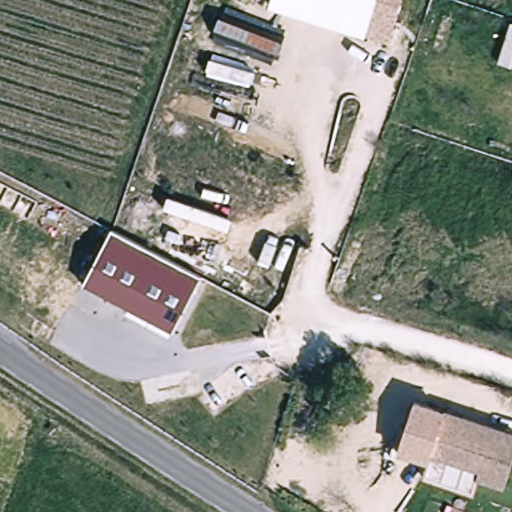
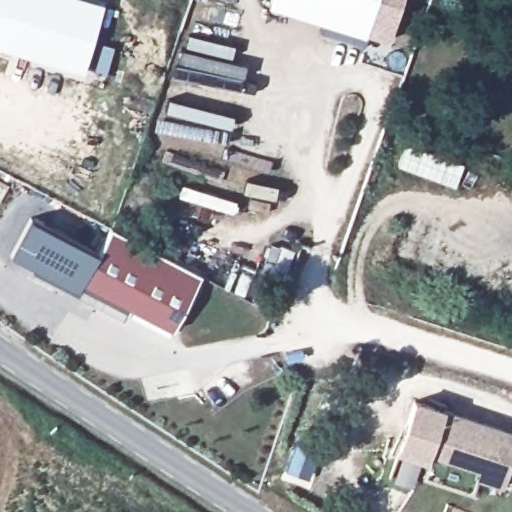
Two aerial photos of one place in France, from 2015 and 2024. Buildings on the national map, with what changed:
new [(85,74),(0,49),(0,0),(92,0),(105,4),(85,74)]
unchanged [(257,0),(388,0),(377,37),(257,1),(257,0)]
new [(399,167),(407,145),(464,165),(456,187),(399,167)]
new [(96,253),(81,282),(75,293),(11,259),(32,220),(96,253)]
unchanged [(200,273),(183,306),(171,329),(81,282),(109,227),(200,273)]
unchanged [(445,412),(430,460),(397,450),(412,402),(445,412)]
unchanged [(507,486),(478,477),(481,469),(441,456),(439,462),(430,460),(445,412),(512,434),(512,467),(507,486)]
unchanged [(430,460),(439,462),(441,456),(481,469),(478,477),(473,493),(424,477),(430,460)]

